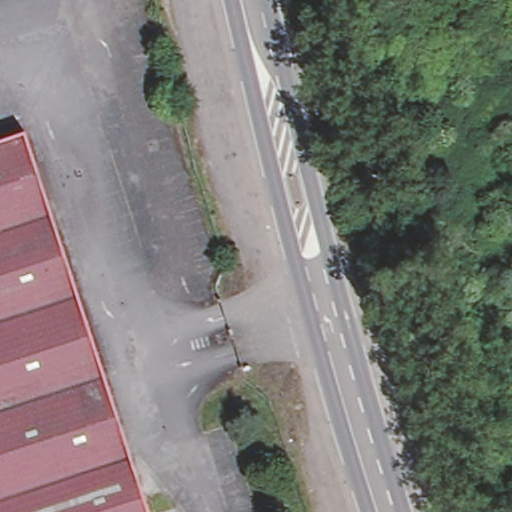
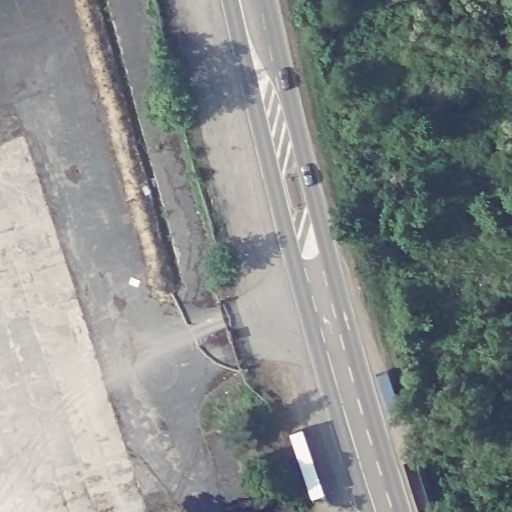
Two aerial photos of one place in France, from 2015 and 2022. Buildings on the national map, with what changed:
demolished [(0,512),(0,145),(24,137),(143,512),(0,512)]

